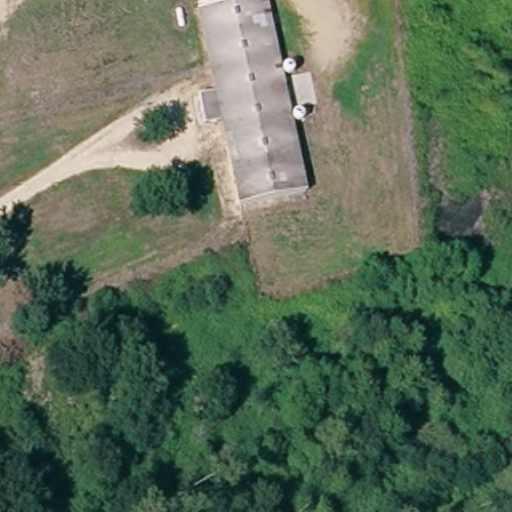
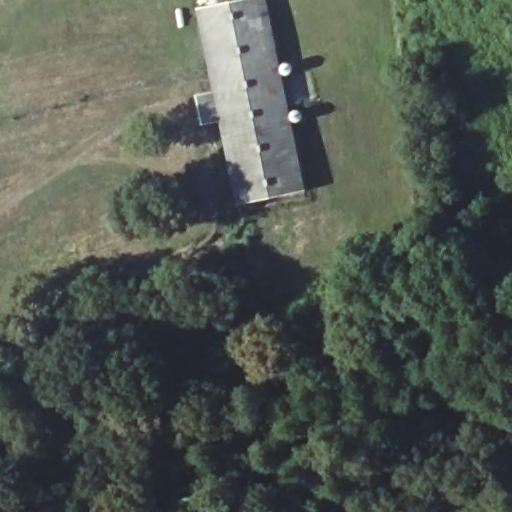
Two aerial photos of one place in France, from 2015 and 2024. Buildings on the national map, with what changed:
unchanged [(250,207),(227,125),(209,130),(202,102),(221,96),(200,13),(257,0),(262,0),(285,95),(310,194),(250,207)]

